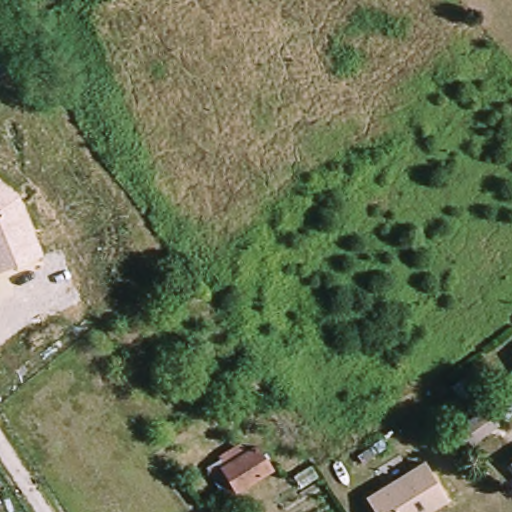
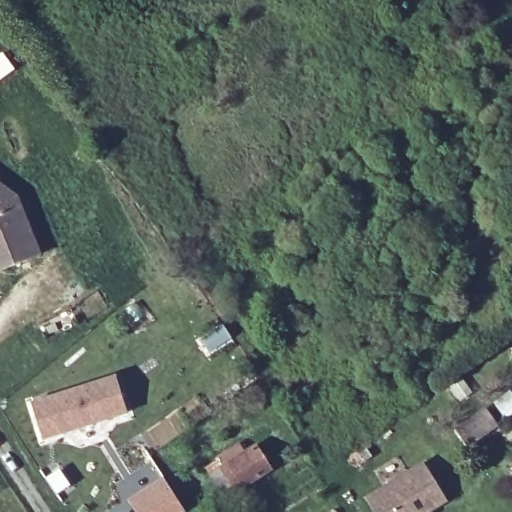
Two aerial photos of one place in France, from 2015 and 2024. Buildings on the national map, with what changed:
unchanged [(21,195),(42,254),(0,269),(0,179),(21,195)]
new [(117,374),(128,413),(44,440),(32,403),(117,374)]
unchanged [(458,401),(448,386),(459,378),(469,392),(458,401)]
unchanged [(512,411),(504,417),(492,402),(507,390),(512,397),(512,411)]
unchanged [(465,445),(454,429),(484,408),(495,423),(465,445)]
unchanged [(360,462),(353,454),(378,438),(384,446),(360,462)]
unchanged [(238,469),(232,460),(248,450),(254,459),(266,451),(280,474),(243,497),(229,474),(238,469)]
unchanged [(375,512),(365,495),(425,460),(451,502),(435,512),(375,512)]
new [(185,512),(136,512),(128,501),(164,478),(185,512)]

